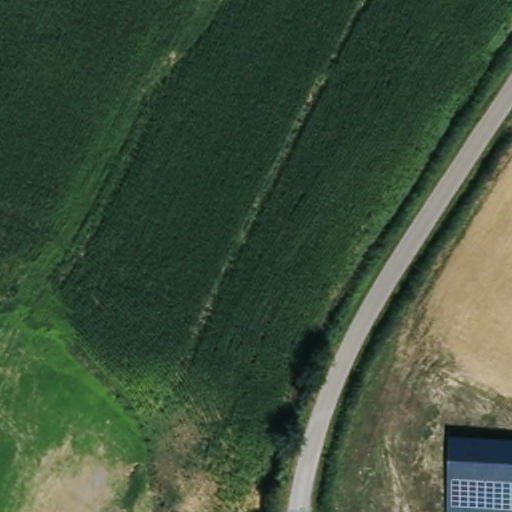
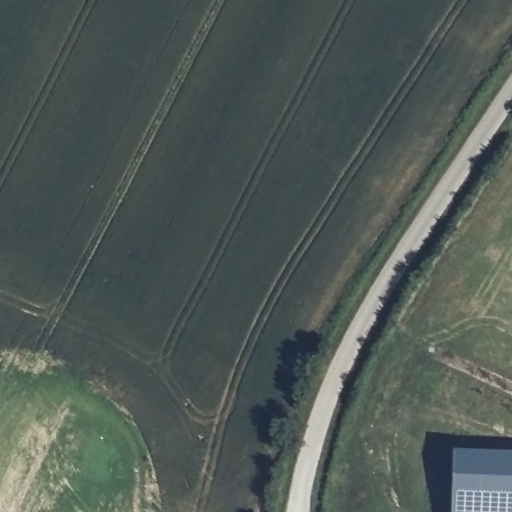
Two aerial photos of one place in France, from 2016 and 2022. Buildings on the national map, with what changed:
unchanged [(452,451),(512,452),(512,512),(451,512),(452,451)]

